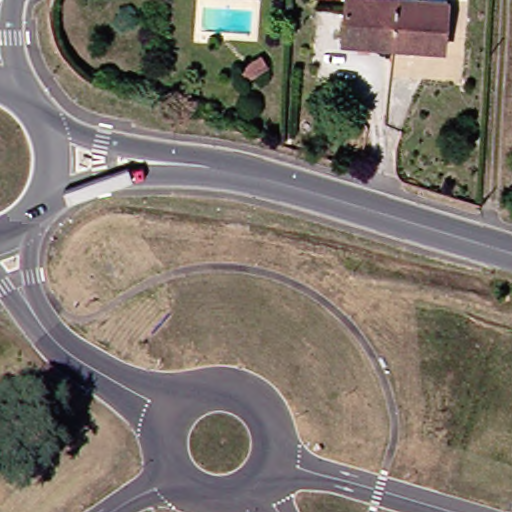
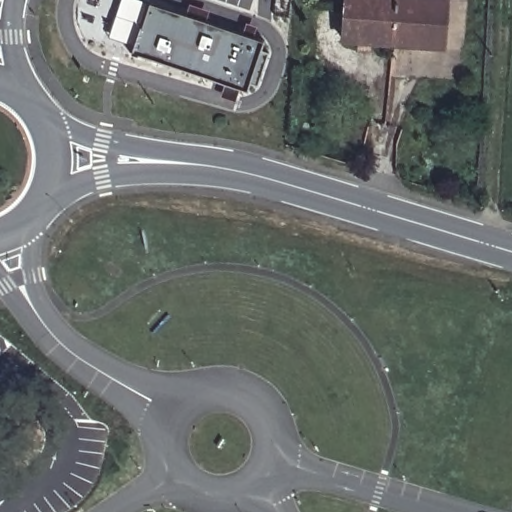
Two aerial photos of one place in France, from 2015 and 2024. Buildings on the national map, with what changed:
unchanged [(392,0),(389,50),(337,46),(342,0),(392,0)]
unchanged [(442,3),(438,53),(389,50),(392,0),(442,3)]
new [(147,8),(136,51),(110,44),(122,1),(147,8)]
new [(189,18),(190,14),(204,18),(202,22),(243,33),(245,29),(253,31),(252,35),(264,38),(262,48),(270,51),(260,85),(252,82),(251,91),(134,59),(148,7),(189,18)]
demolished [(267,66),(249,77),(242,68),(261,56),(267,66)]

